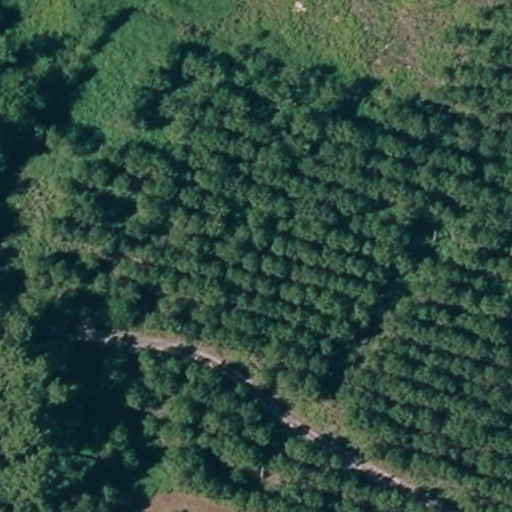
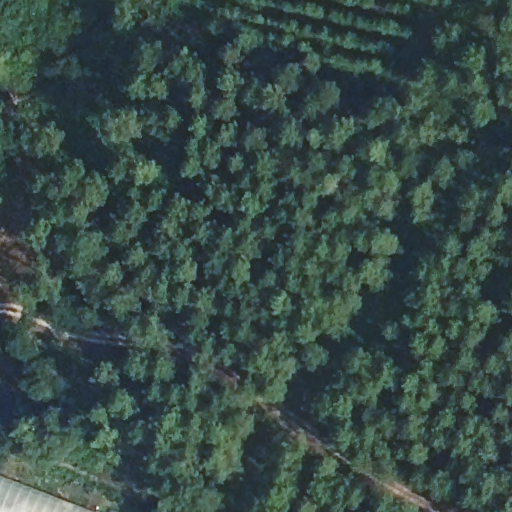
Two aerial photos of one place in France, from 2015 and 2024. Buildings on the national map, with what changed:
new [(0,474),(99,512),(0,512),(0,474)]

